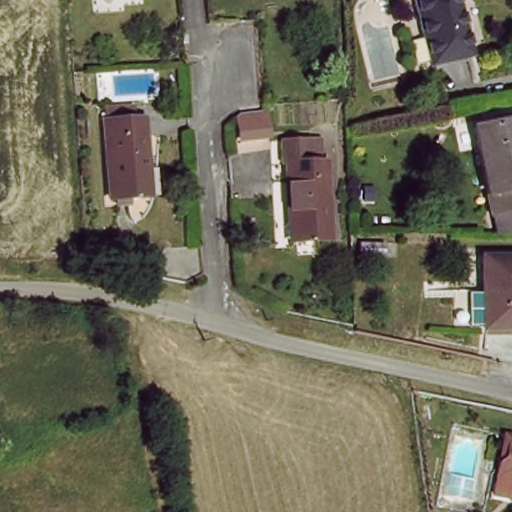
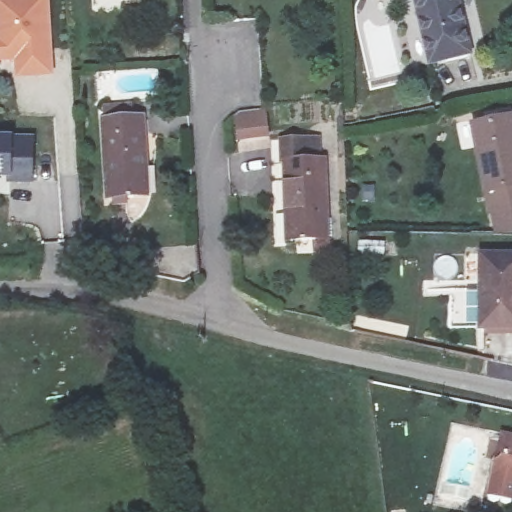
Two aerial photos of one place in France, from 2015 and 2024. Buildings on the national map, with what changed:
new [(15,61),(0,62),(0,0),(50,0),(52,78),(17,80),(15,61)]
unchanged [(431,66),(421,0),(463,0),(472,59),(431,66)]
unchanged [(477,122),(512,116),(512,210),(493,214),(477,122)]
unchanged [(157,201),(112,204),(107,120),(149,119),(157,201)]
new [(35,185),(7,185),(8,179),(0,179),(0,136),(15,136),(37,137),(35,185)]
unchanged [(327,229),(286,228),(287,146),(327,145),(327,229)]
unchanged [(481,249),(512,251),(512,328),(476,327),(481,249)]
unchanged [(157,254),(207,252),(209,277),(202,290),(159,281),(157,254)]
unchanged [(500,455),(506,452),(508,437),(512,437),(512,472),(498,470),(500,455)]

